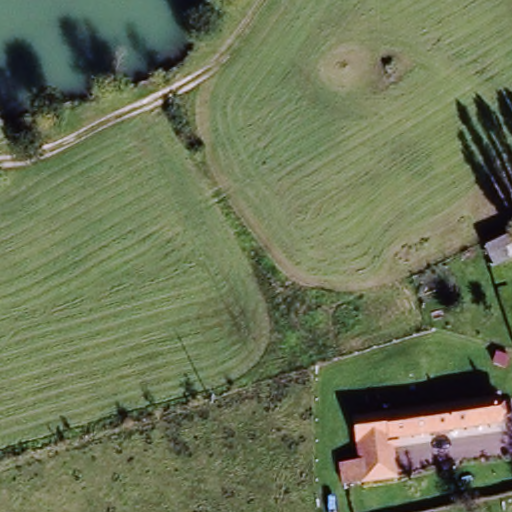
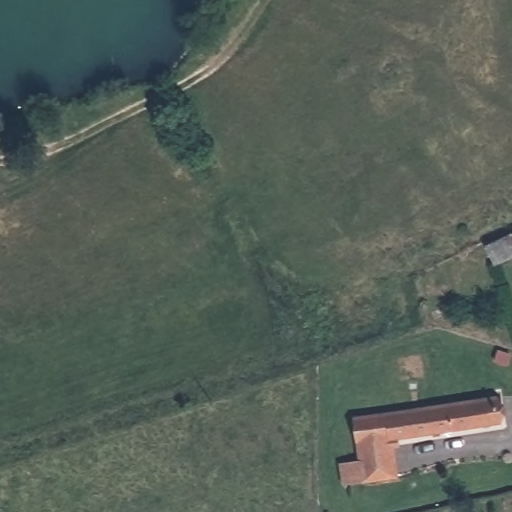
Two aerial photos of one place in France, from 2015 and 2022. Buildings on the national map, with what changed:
unchanged [(512,238),(512,255),(491,264),(484,248),(511,236),(512,238)]
unchanged [(344,461),(359,459),(354,416),(500,393),(504,418),(394,432),(396,457),(385,477),(346,483),(344,461)]

